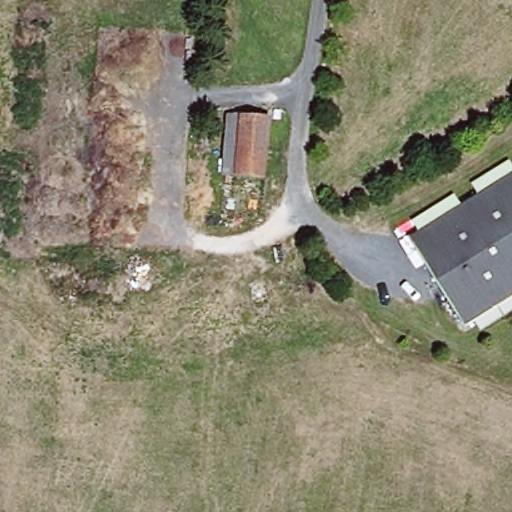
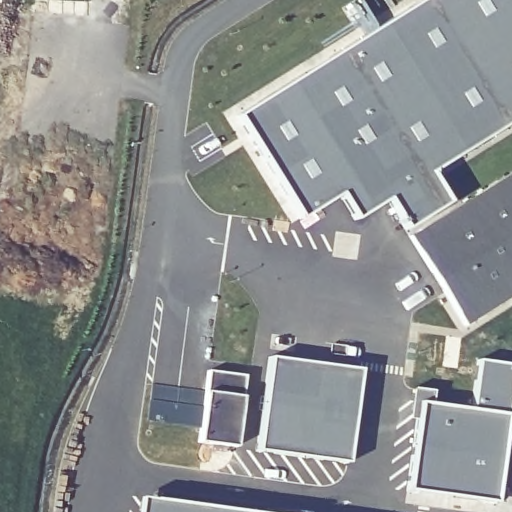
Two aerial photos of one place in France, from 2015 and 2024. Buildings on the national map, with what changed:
new [(421,0),(512,0),(512,120),(429,172),(447,204),(404,229),(386,199),(354,219),(338,194),(299,219),(235,116),(421,0)]
unchanged [(411,233),(512,171),(512,300),(468,327),(411,233)]
new [(268,361),(358,373),(346,466),(255,453),(268,361)]
new [(151,387),(204,394),(206,374),(243,379),(233,450),(196,445),(198,430),(146,423),(151,387)]
new [(419,402),(506,414),(493,506),(406,493),(419,402)]
new [(226,512),(151,512),(153,502),(226,512)]

